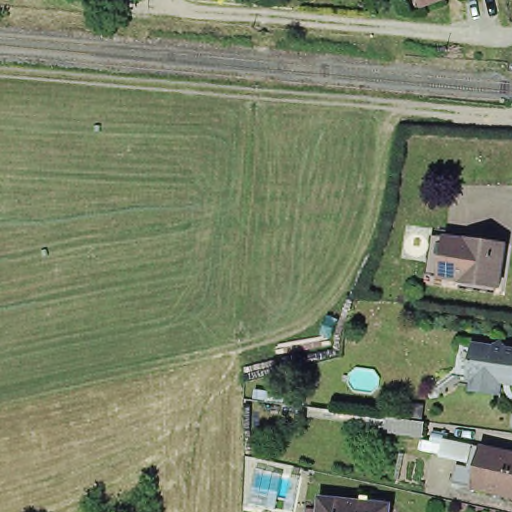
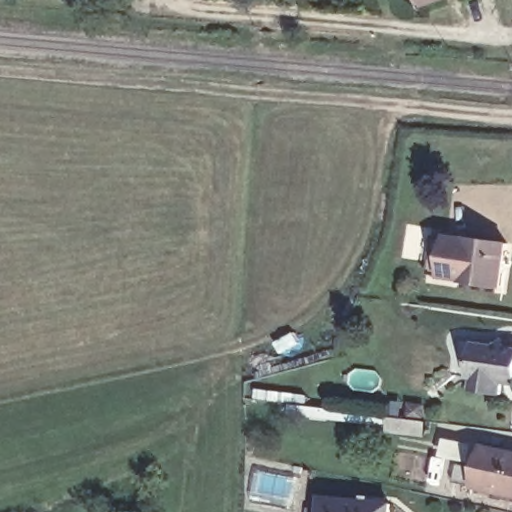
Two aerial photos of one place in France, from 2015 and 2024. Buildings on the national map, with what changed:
unchanged [(423,5),(421,0),(438,0),(423,5)]
unchanged [(512,241),(512,253),(507,285),(468,280),(469,277),(447,274),(433,271),(439,231),(453,233),(475,237),(476,235),(507,240),(512,241)]
unchanged [(477,371),(473,370),(478,335),(497,339),(498,337),(511,339),(510,340),(512,340),(512,376),(506,375),(504,386),(476,382),(477,371)]
unchanged [(424,420),(423,432),(386,427),(388,415),(424,420)]
unchanged [(460,485),(464,467),(475,470),(480,448),(489,450),(512,454),(512,495),(482,490),(460,485)]
unchanged [(326,507),(327,495),(394,503),(394,512),(311,512),(312,506),(326,507)]

